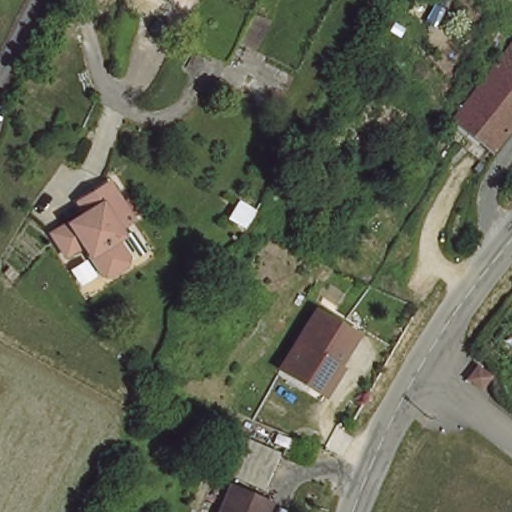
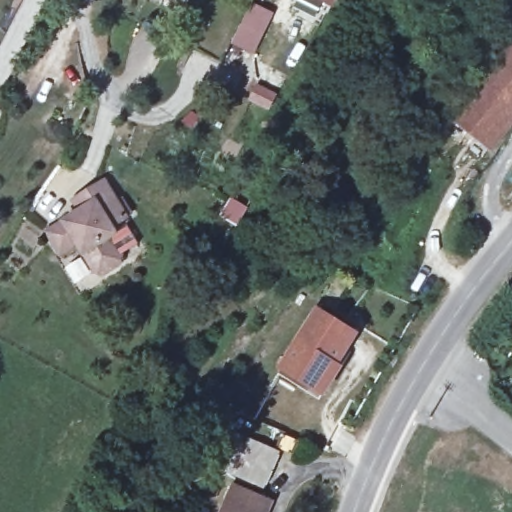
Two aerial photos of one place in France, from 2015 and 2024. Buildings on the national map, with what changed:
new [(161,0),(160,1),(158,0),(161,0)]
new [(317,0),(337,0),(333,8),(317,0)]
new [(230,44),(250,1),(272,13),(252,54),(230,44)]
unchanged [(473,134),(460,148),(440,124),(511,32),(512,33),(512,126),(494,151),(473,134)]
unchanged [(129,218),(115,224),(120,230),(113,235),(121,253),(118,262),(104,268),(95,265),(80,239),(63,248),(50,225),(80,207),(74,195),(86,189),(106,178),(129,218)]
unchanged [(322,394),(310,385),(279,367),(314,309),(353,333),(333,366),(337,369),(322,394)]
unchanged [(493,373),(487,384),(471,374),(477,364),(493,373)]
unchanged [(235,429),(282,447),(267,484),(221,466),(235,429)]
unchanged [(275,498),(268,512),(220,512),(233,481),(275,498)]

